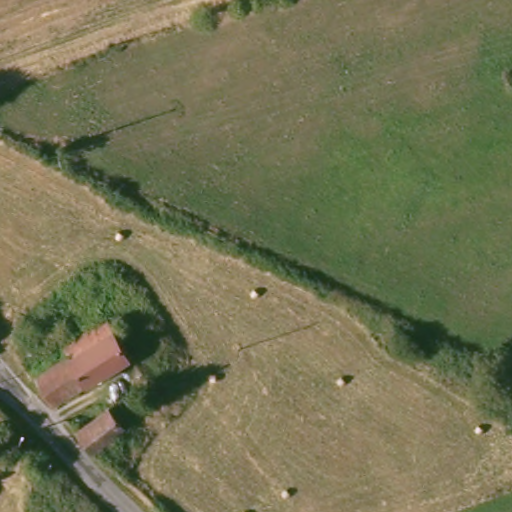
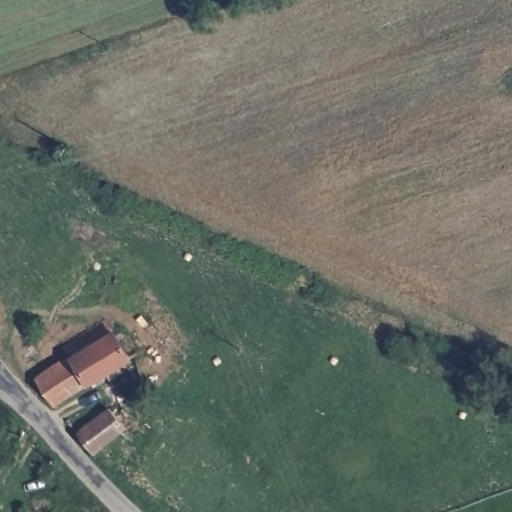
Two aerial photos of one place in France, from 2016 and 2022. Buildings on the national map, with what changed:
unchanged [(113,334),(128,333),(141,351),(129,360),(55,406),(36,378),(68,357),(62,348),(104,320),(113,334)]
unchanged [(108,407),(114,414),(123,408),(134,421),(94,452),(90,448),(77,432),(108,407)]

